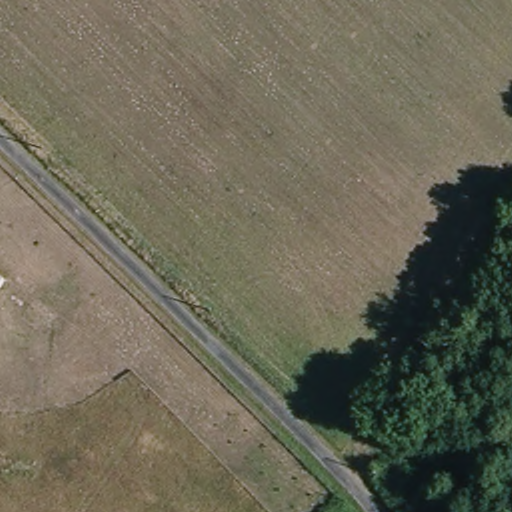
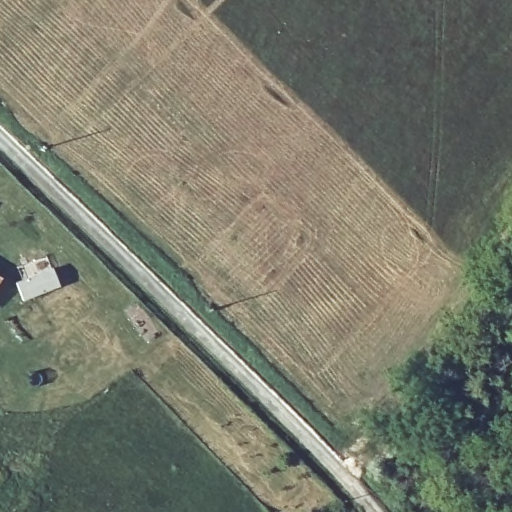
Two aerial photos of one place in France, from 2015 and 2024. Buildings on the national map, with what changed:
unchanged [(3,279),(0,284),(0,278),(3,279)]

